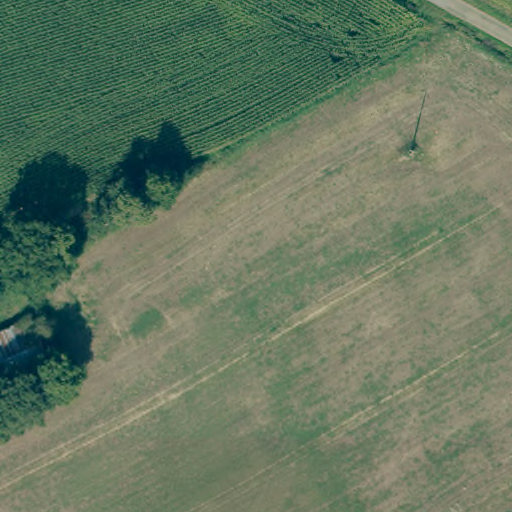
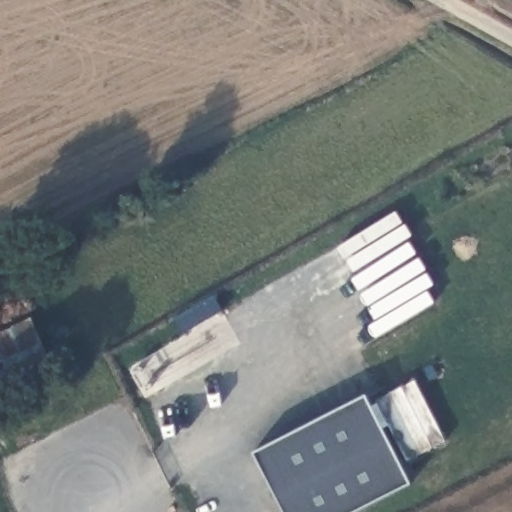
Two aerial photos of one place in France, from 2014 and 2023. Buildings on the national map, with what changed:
unchanged [(0,378),(0,327),(22,317),(41,359),(0,378)]
new [(363,397),(408,484),(354,512),(283,512),(252,454),(363,397)]

